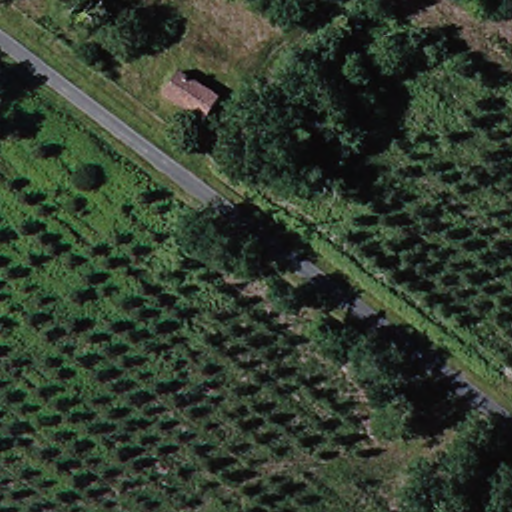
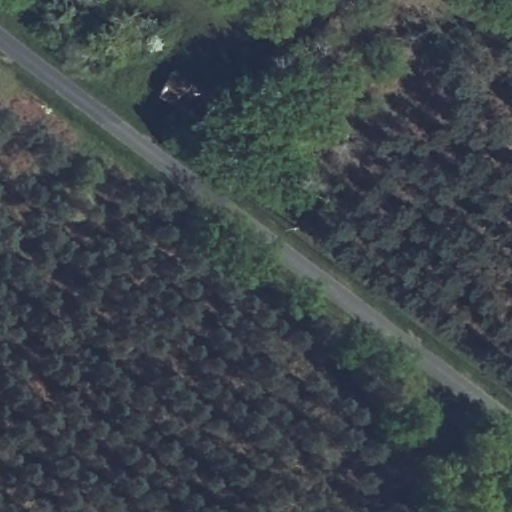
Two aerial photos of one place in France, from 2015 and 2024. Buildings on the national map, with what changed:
unchanged [(198,122),(161,108),(181,70),(215,87),(198,122)]

